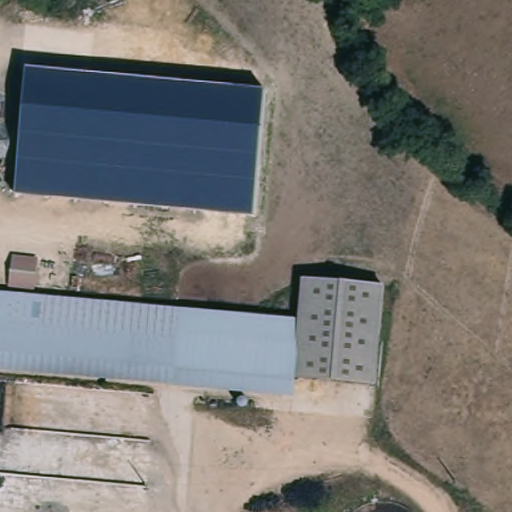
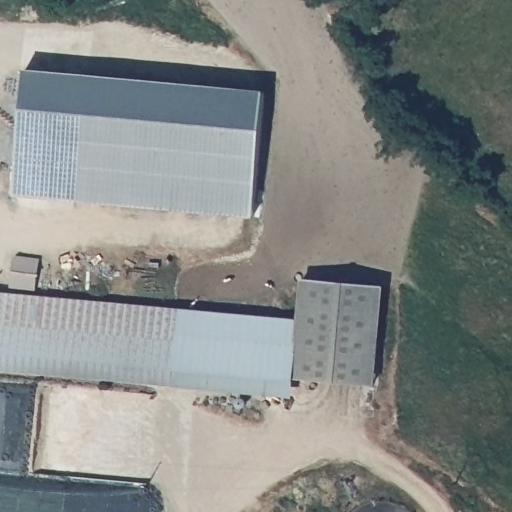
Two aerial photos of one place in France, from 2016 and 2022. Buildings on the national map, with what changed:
unchanged [(26,68),(265,88),(256,215),(18,193),(26,68)]
unchanged [(292,395),(0,370),(0,292),(298,317),(303,278),(385,284),(377,383),(293,377),(292,395)]

